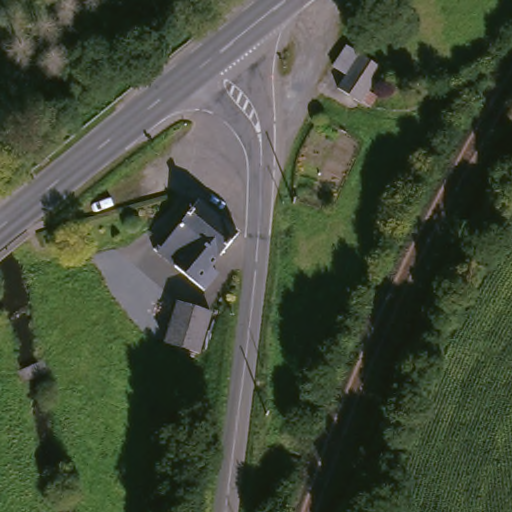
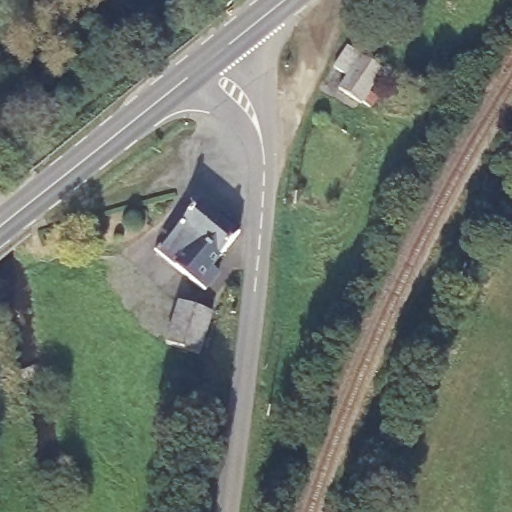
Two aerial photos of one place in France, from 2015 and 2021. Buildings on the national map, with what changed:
unchanged [(354,108),(333,93),(343,78),(327,67),(341,45),(359,58),(379,72),(354,108)]
unchanged [(240,239),(211,274),(218,281),(204,298),(152,254),(197,204),(240,239)]
unchanged [(160,348),(175,310),(210,324),(195,359),(160,348)]

